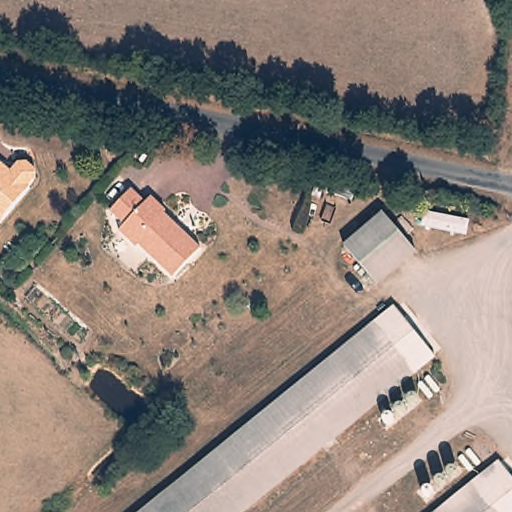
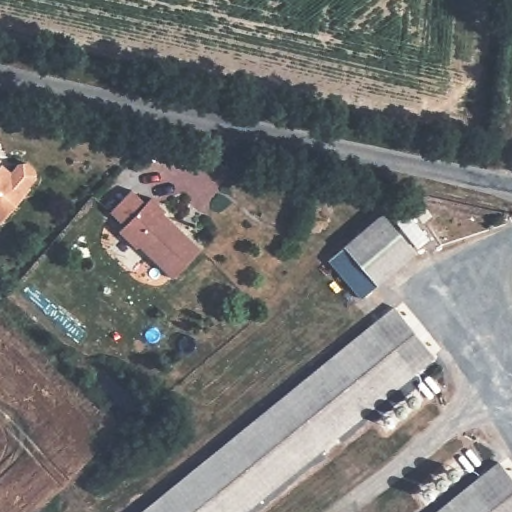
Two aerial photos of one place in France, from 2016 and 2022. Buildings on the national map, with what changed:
unchanged [(16,171),(26,162),(35,161),(43,168),(42,176),(2,220),(0,218),(0,165),(5,169),(16,171)]
unchanged [(138,183),(152,196),(158,190),(174,204),(169,209),(204,243),(178,270),(144,237),(141,240),(125,224),(129,221),(115,205),(138,183)]
unchanged [(343,242),(382,211),(393,224),(415,251),(374,285),(350,251),(343,242)]
unchanged [(146,512),(397,307),(408,322),(420,337),(432,352),(236,512),(146,512)]
unchanged [(440,512),(501,463),(511,477),(512,479),(512,512),(440,512)]

